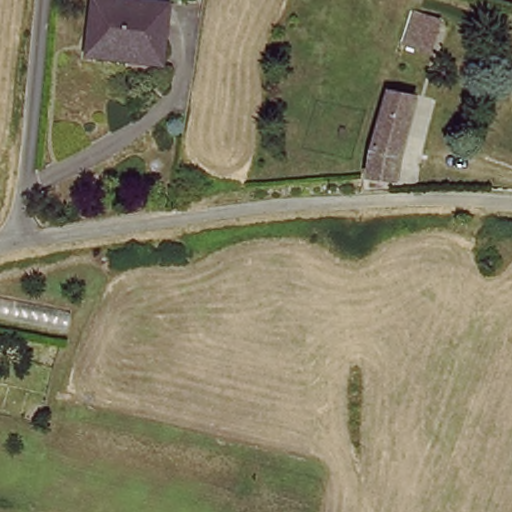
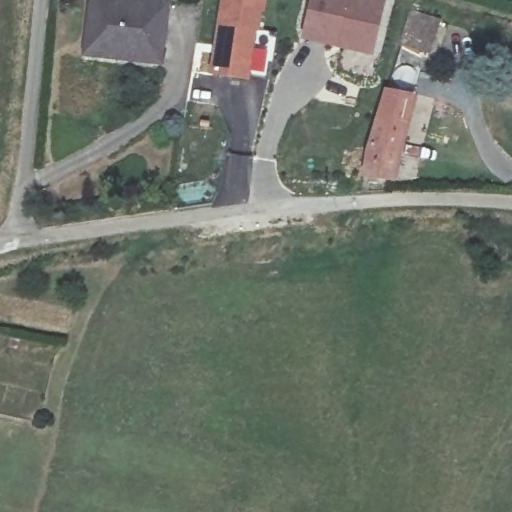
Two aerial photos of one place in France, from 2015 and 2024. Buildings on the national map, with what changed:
unchanged [(172,4),(165,59),(127,54),(128,46),(89,41),(94,0),(138,0),(172,4)]
new [(267,13),(263,13),(261,34),(256,34),(250,82),(210,76),(221,0),(268,0),(267,13)]
new [(301,41),(308,0),(379,0),(384,1),(370,56),(301,41)]
unchanged [(439,24),(430,54),(402,45),(411,15),(439,24)]
unchanged [(411,99),(390,182),(366,176),(388,92),(411,99)]

